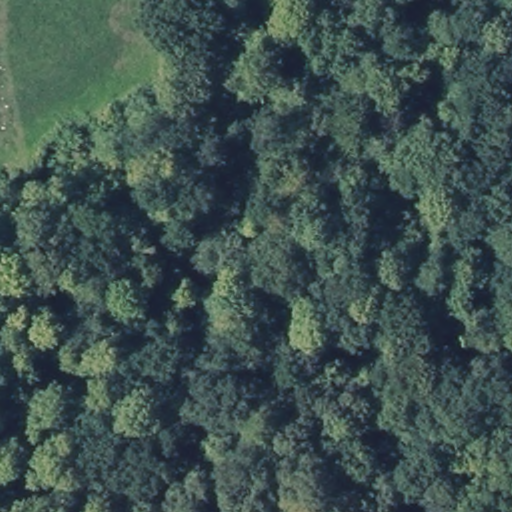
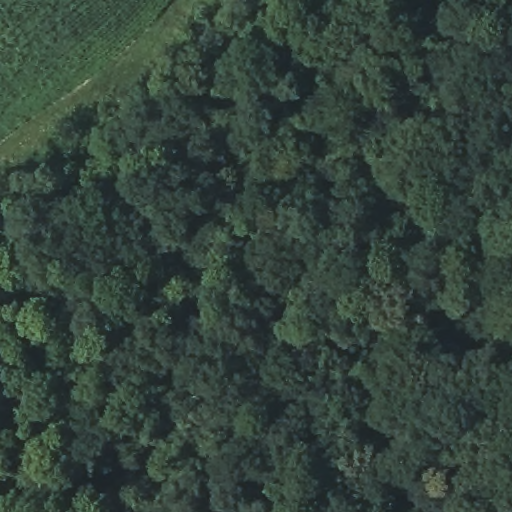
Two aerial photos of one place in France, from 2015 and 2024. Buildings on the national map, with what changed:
[]

